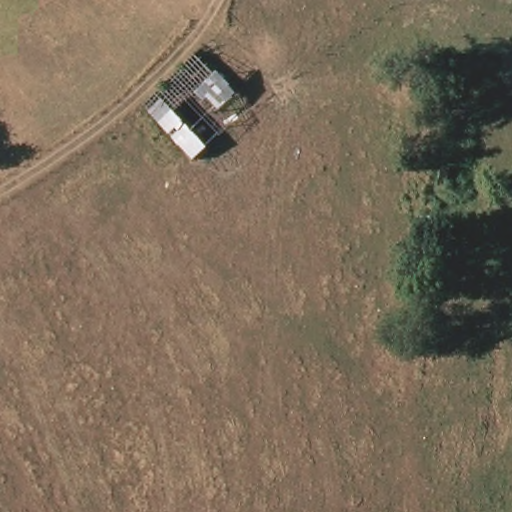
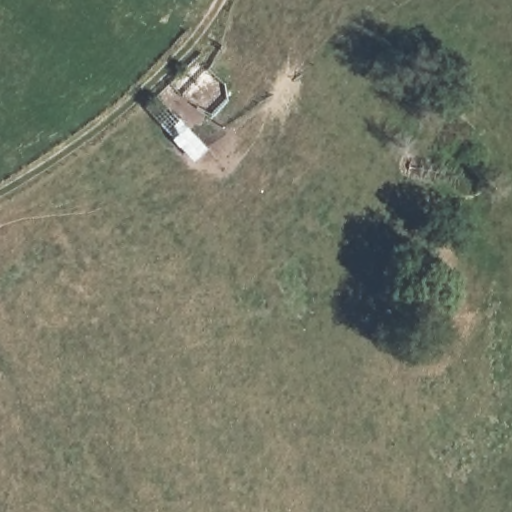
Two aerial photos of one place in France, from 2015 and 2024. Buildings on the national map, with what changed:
unchanged [(197,53),(240,95),(227,106),(239,126),(195,160),(145,114),(197,53)]

